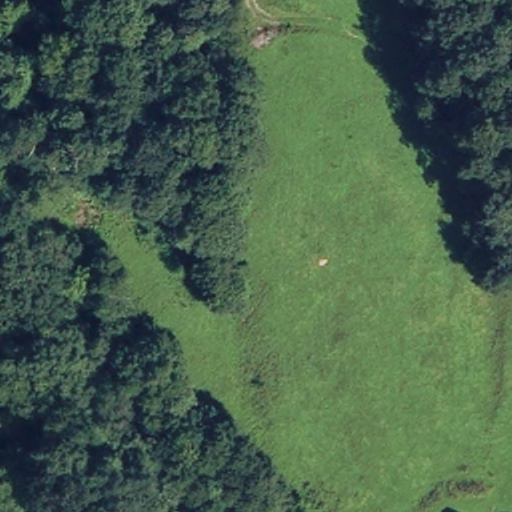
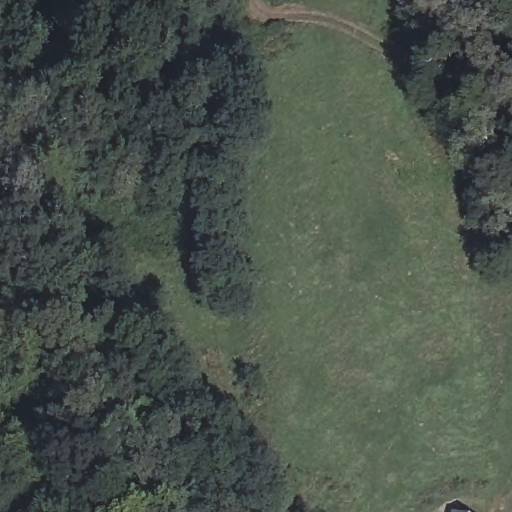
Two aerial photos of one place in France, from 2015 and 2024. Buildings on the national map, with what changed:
[]

